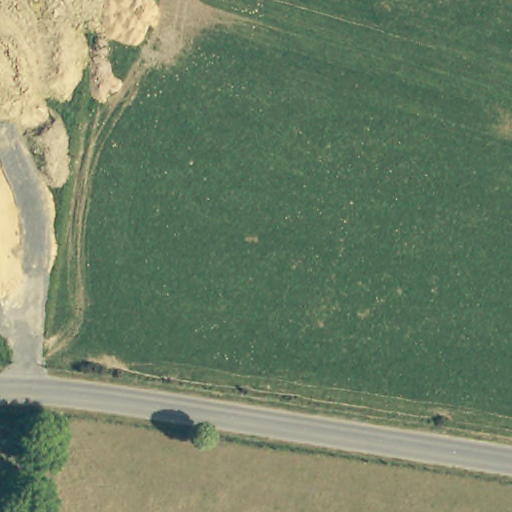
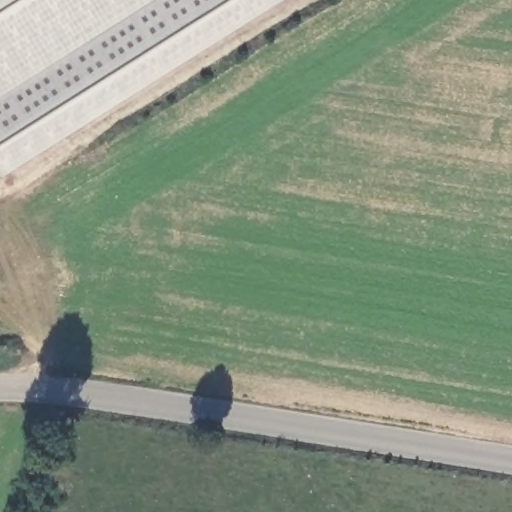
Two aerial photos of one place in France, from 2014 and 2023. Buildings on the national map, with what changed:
unchanged [(0,94),(0,0),(150,0),(0,94)]
new [(0,174),(0,94),(150,0),(277,0),(0,174)]

